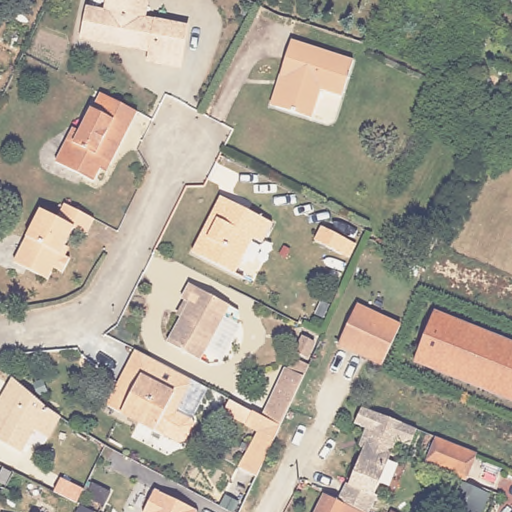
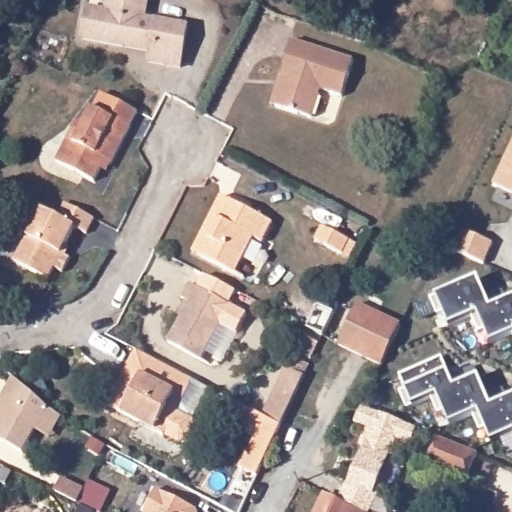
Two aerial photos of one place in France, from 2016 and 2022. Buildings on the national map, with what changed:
unchanged [(188,26),(180,68),(148,62),(151,45),(124,40),(123,46),(82,38),(88,7),(106,11),(108,0),(149,0),(146,18),(188,26)]
unchanged [(280,73),(292,39),(353,62),(341,97),(320,89),(309,117),(275,104),(269,101),(280,73)]
unchanged [(98,172),(91,185),(54,166),(71,131),(78,134),(89,111),(91,112),(100,96),(103,98),(126,110),(136,115),(110,167),(106,176),(98,172)]
new [(512,145),(512,193),(493,185),(512,145)]
unchanged [(234,275),(198,256),(190,252),(219,196),(232,203),(270,223),(260,243),(241,279),(234,275)]
unchanged [(59,216),(67,201),(86,211),(97,217),(89,232),(77,226),(64,251),(73,257),(66,271),(57,267),(51,278),(17,260),(43,208),(59,216)]
unchanged [(339,256),(313,243),(320,229),(346,242),(339,256)]
new [(462,232),(492,244),(483,265),(453,253),(462,232)]
new [(491,309),(472,318),(449,328),(443,313),(437,316),(430,300),(478,279),(491,309)]
unchanged [(168,348),(188,308),(181,304),(189,290),(229,311),(201,365),(168,348)]
new [(512,299),(512,335),(490,345),(484,331),(478,334),(472,318),(491,308),(512,299)]
unchanged [(397,327),(378,366),(335,344),(354,305),(397,327)]
demolished [(490,329),(466,378),(420,359),(438,309),(490,329)]
demolished [(512,396),(466,378),(490,329),(512,338),(512,396)]
unchanged [(162,434),(108,405),(137,351),(191,381),(162,434)]
unchanged [(279,426),(262,416),(283,368),(289,356),(307,364),(302,376),(280,425),(279,426)]
new [(454,388),(431,399),(407,410),(399,393),(405,390),(399,377),(441,358),(454,388)]
new [(491,407),(473,416),(449,426),(443,413),(438,415),(431,399),(454,388),(478,377),(491,407)]
unchanged [(46,438),(33,432),(22,455),(0,443),(0,396),(8,378),(47,403),(60,410),(46,438)]
new [(485,430),(479,432),(473,416),(491,407),(512,398),(512,434),(491,443),(485,430)]
unchanged [(412,450),(395,444),(389,462),(402,468),(392,492),(381,488),(372,512),(366,512),(337,498),(364,430),(352,425),(361,410),(418,430),(412,450)]
unchanged [(249,427),(248,423),(253,412),(279,427),(264,464),(258,477),(239,469),(256,430),(249,427)]
unchanged [(468,481),(493,494),(484,512),(463,512),(455,510),(463,482),(426,469),(434,438),(476,452),(468,481)]
unchanged [(0,494),(0,475),(8,480),(0,494)]
unchanged [(62,489),(86,500),(80,512),(77,512),(56,502),(56,501),(62,489)]
unchanged [(197,512),(147,512),(157,492),(197,512)]
unchanged [(337,498),(366,512),(315,512),(324,492),(337,498)]

